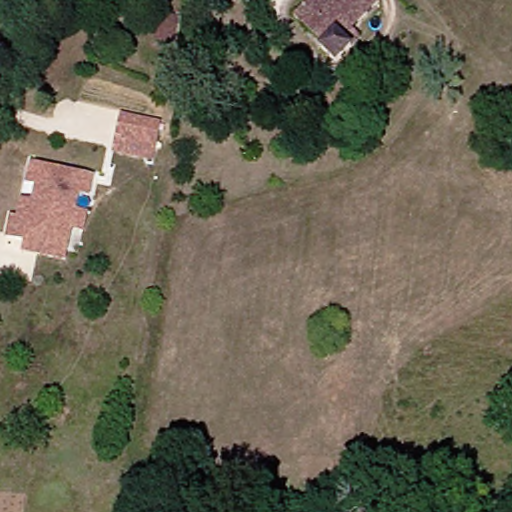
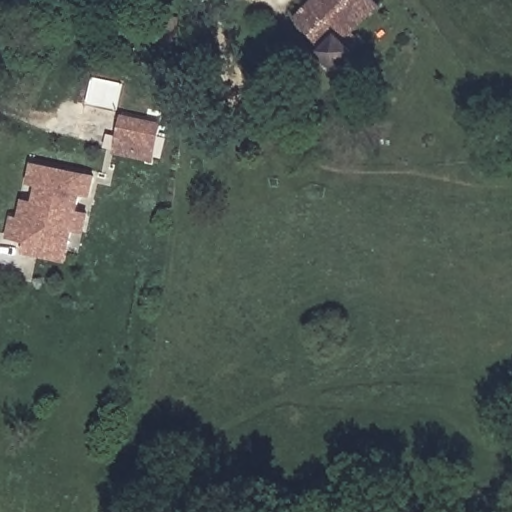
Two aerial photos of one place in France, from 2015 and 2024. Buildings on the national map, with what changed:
unchanged [(186,1),(187,20),(172,16),(174,0),(186,1)]
unchanged [(360,46),(362,49),(346,67),(328,53),(331,49),(298,22),(317,0),(382,0),(359,29),(368,37),(360,46)]
unchanged [(119,135),(123,116),(163,125),(155,160),(137,156),(115,151),(119,135)]
unchanged [(25,251),(27,242),(7,237),(12,215),(21,217),(25,200),(34,201),(38,184),(28,182),(32,162),(95,176),(91,196),(81,195),(77,210),(87,212),(83,231),(73,230),(71,240),(67,260),(25,251)]

